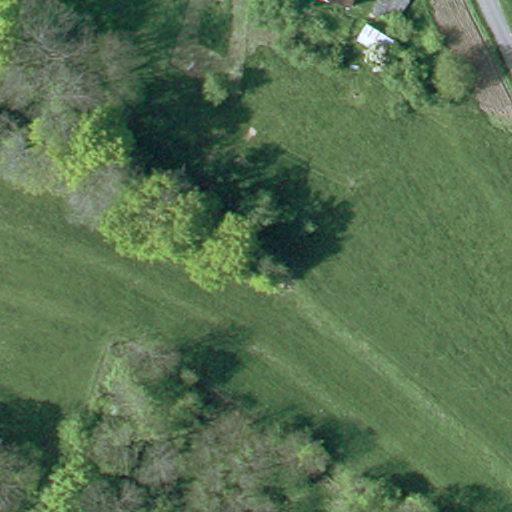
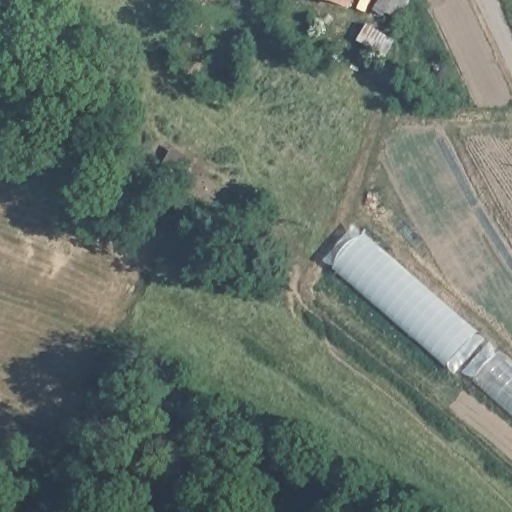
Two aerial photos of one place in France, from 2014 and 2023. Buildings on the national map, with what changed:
unchanged [(347,10),(317,0),(351,0),(347,10)]
unchanged [(405,18),(385,5),(389,0),(415,0),(417,1),(405,18)]
new [(332,269),(364,232),(479,330),(447,368),(332,269)]

